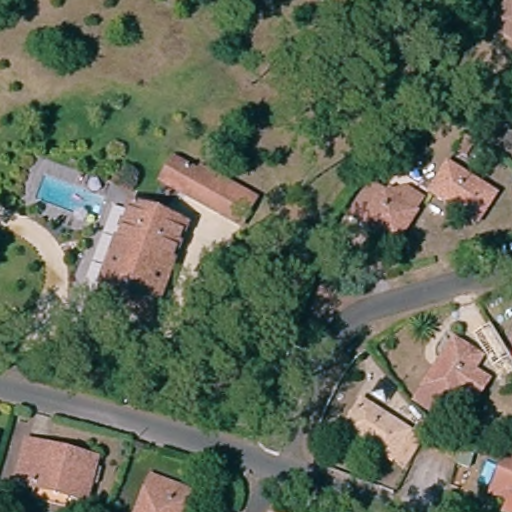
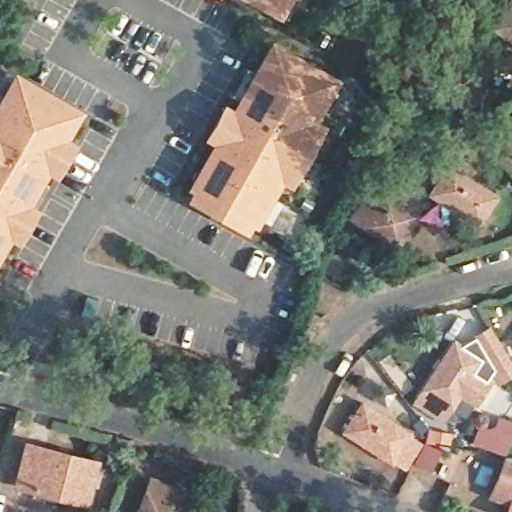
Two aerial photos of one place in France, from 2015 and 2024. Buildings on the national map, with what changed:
new [(246,0),(289,0),(279,17),(246,0)]
unchanged [(484,30),(504,0),(512,5),(512,48),(484,30)]
new [(252,222),(246,232),(187,199),(191,190),(186,187),(211,140),(202,136),(222,100),(232,105),(271,37),(342,78),(316,122),(323,127),(290,186),(280,182),(257,224),(252,222)]
unchanged [(452,77),(476,43),(512,63),(491,107),(452,77)]
new [(83,110),(68,139),(77,143),(57,178),(48,173),(32,205),(39,209),(19,245),(10,240),(0,258),(0,92),(13,70),(83,110)]
demolished [(211,215),(159,185),(173,160),(199,175),(201,173),(227,188),(211,215)]
unchanged [(490,201),(471,231),(422,200),(441,170),(490,201)]
unchanged [(345,220),(364,189),(381,198),(385,192),(399,190),(420,203),(390,249),(345,220)]
demolished [(147,326),(95,307),(131,211),(182,230),(147,326)]
new [(496,380),(489,369),(470,336),(487,326),(506,359),(512,370),(496,380)]
unchanged [(470,403),(453,393),(437,421),(409,403),(448,342),(476,359),(467,373),(482,383),(470,403)]
unchanged [(511,346),(512,344),(512,347),(511,346)]
unchanged [(422,444),(404,471),(342,431),(360,405),(422,444)]
unchanged [(87,506),(32,492),(31,495),(11,489),(24,442),(43,447),(42,449),(100,463),(87,506)]
unchanged [(506,512),(507,507),(487,498),(503,460),(512,462),(512,512),(506,512)]
unchanged [(136,512),(145,487),(180,499),(187,502),(184,512),(136,512)]

